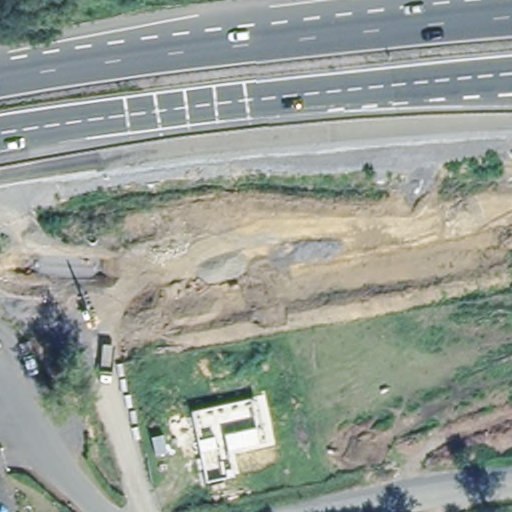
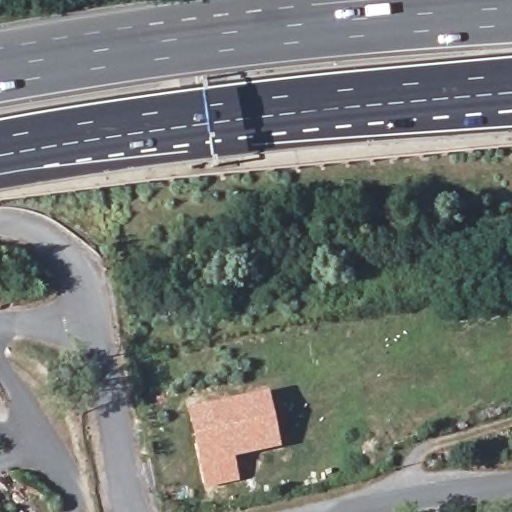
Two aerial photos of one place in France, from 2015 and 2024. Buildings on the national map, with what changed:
new [(250,400),(260,445),(228,452),(234,479),(206,485),(190,413),(250,400)]

